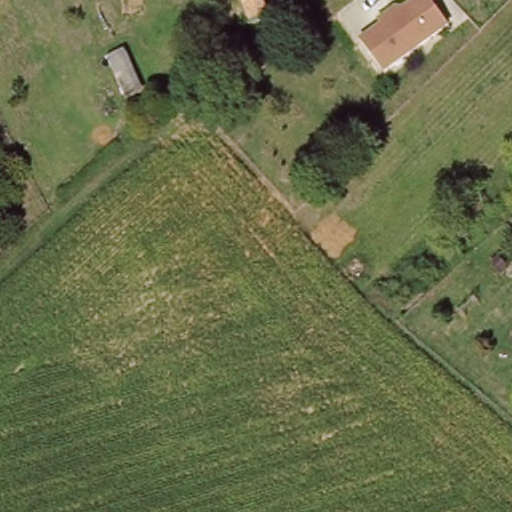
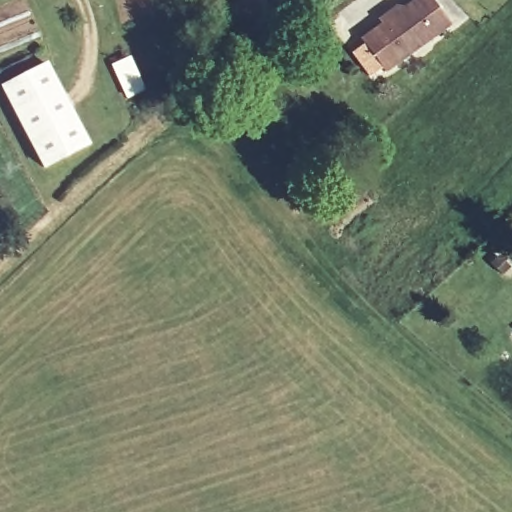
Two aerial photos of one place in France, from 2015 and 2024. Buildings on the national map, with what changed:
unchanged [(248,22),(241,1),(243,0),(263,0),(268,15),(248,22)]
unchanged [(382,23),(378,16),(398,3),(403,9),(415,0),(433,0),(453,26),(386,73),(361,38),(382,23)]
unchanged [(126,51),(145,93),(127,101),(108,59),(126,51)]
new [(90,145),(44,170),(2,86),(47,62),(90,145)]

